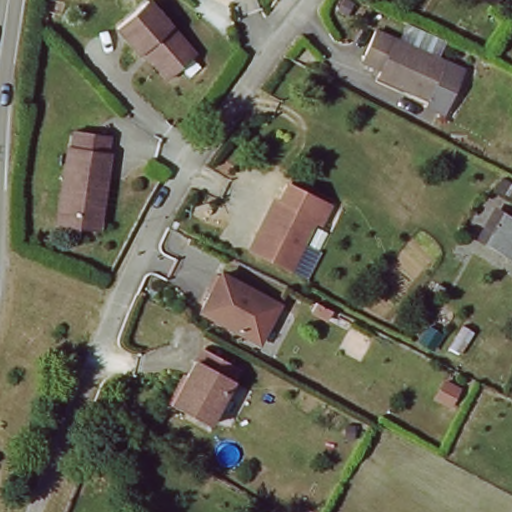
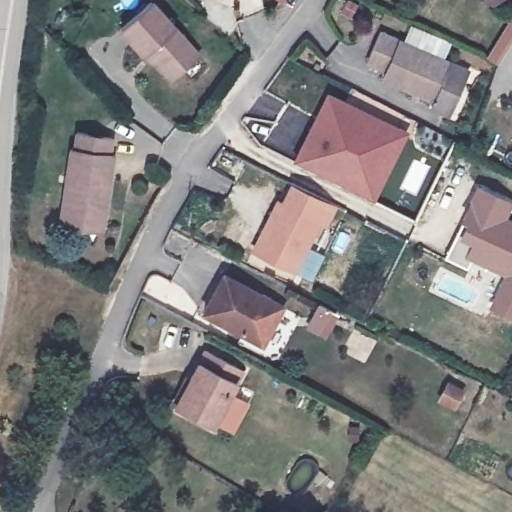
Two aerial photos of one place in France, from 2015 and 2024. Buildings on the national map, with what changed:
unchanged [(204,53),(176,76),(153,47),(149,51),(127,23),(153,0),(160,0),(204,53)]
unchanged [(477,0),(506,0),(499,12),(477,0)]
unchanged [(452,115),(433,106),(436,100),(384,78),(389,69),(369,61),(383,31),(472,70),(452,115)]
new [(414,133),(382,197),(301,155),(333,92),(414,133)]
unchanged [(60,222),(63,211),(76,145),(80,146),(85,130),(116,136),(113,154),(116,154),(102,219),(99,230),(60,222)]
new [(512,197),(512,203),(506,216),(512,219),(512,317),(491,307),(508,277),(470,257),(478,242),(466,235),(469,231),(461,227),(482,181),(512,197)]
unchanged [(339,209),(329,229),(321,225),(296,273),(256,253),(281,204),(286,206),(296,187),(339,209)]
demolished [(512,212),(512,256),(489,242),(509,210),(512,212)]
unchanged [(282,302),(261,340),(203,308),(224,271),(282,302)]
unchanged [(182,394),(205,354),(241,375),(219,415),(209,432),(173,411),(182,394)]
unchanged [(466,387),(457,404),(444,397),(453,380),(466,387)]

